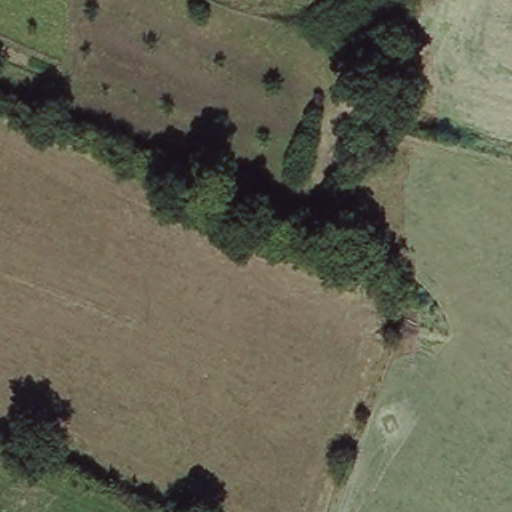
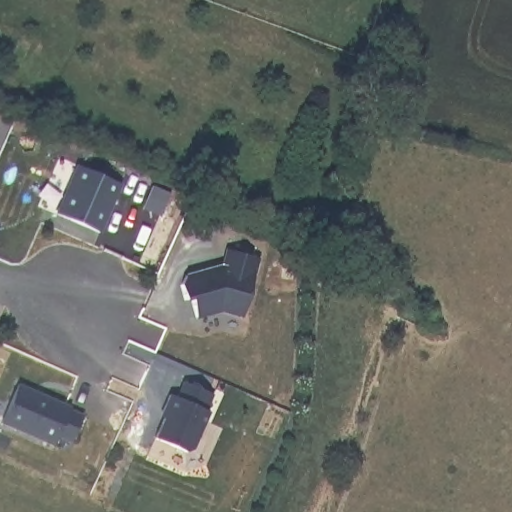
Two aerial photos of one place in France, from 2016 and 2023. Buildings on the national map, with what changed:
new [(123,184),(102,232),(60,214),(81,165),(123,184)]
new [(181,283),(185,275),(223,263),(226,248),(260,257),(245,318),(223,311),(198,317),(193,298),(186,300),(181,283)]
new [(169,412),(166,410),(173,394),(180,397),(187,381),(216,394),(209,410),(213,412),(195,454),(158,437),(169,412)]
new [(21,384),(73,406),(72,408),(86,415),(74,442),(60,436),(56,445),(4,423),(21,384)]

